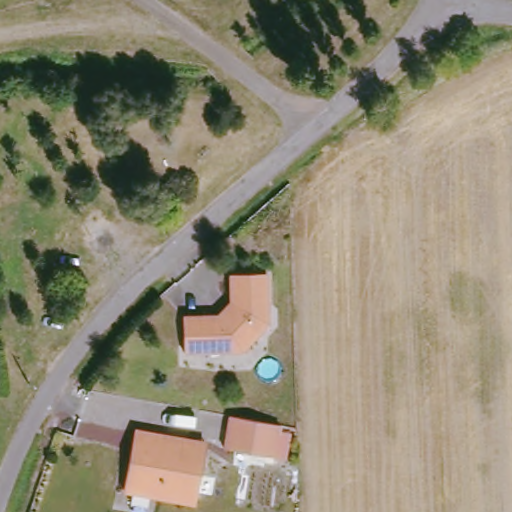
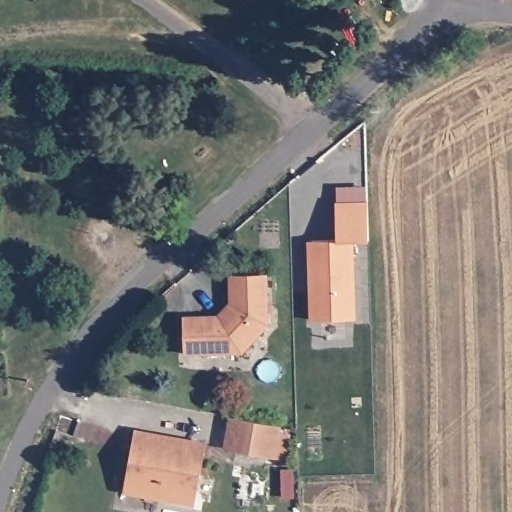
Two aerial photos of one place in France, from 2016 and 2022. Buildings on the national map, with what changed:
new [(337,240),(337,202),(367,200),(368,240),(354,240),(356,318),(310,320),(308,240),(337,240)]
unchanged [(225,316),(237,304),(235,276),(272,275),(273,325),(247,352),(190,353),(189,317),(225,316)]
unchanged [(280,431),(275,463),(225,455),(230,422),(280,431)]
unchanged [(135,436),(162,442),(161,446),(205,452),(195,507),(123,495),(135,436)]

